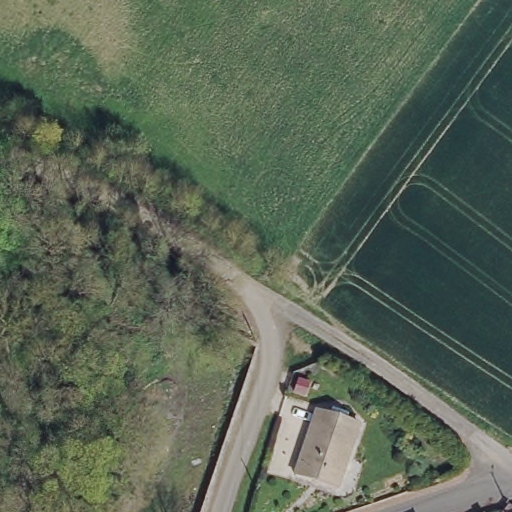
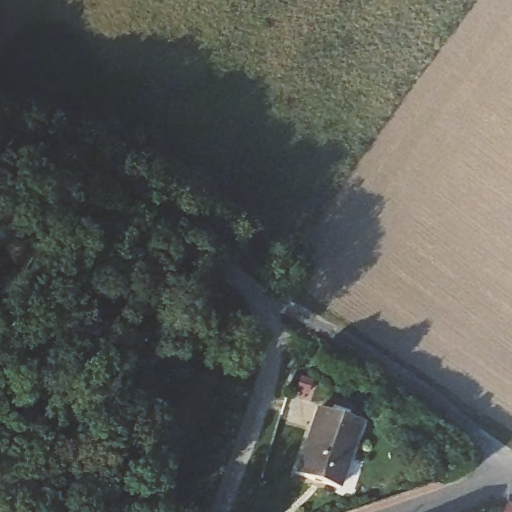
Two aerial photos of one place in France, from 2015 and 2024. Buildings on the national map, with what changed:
unchanged [(317,400),(355,414),(333,480),(295,468),(317,400)]
unchanged [(512,505),(512,512),(499,512),(507,501),(512,505)]

